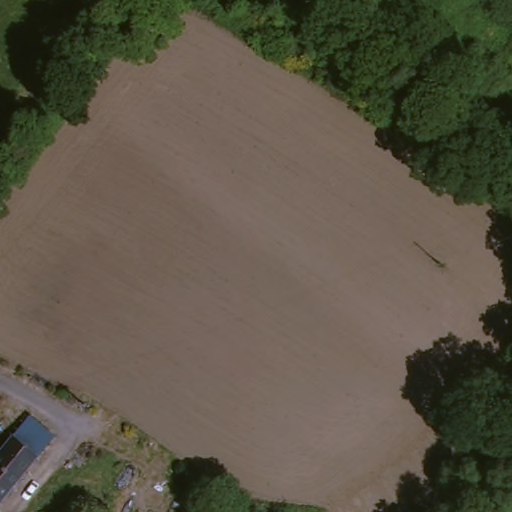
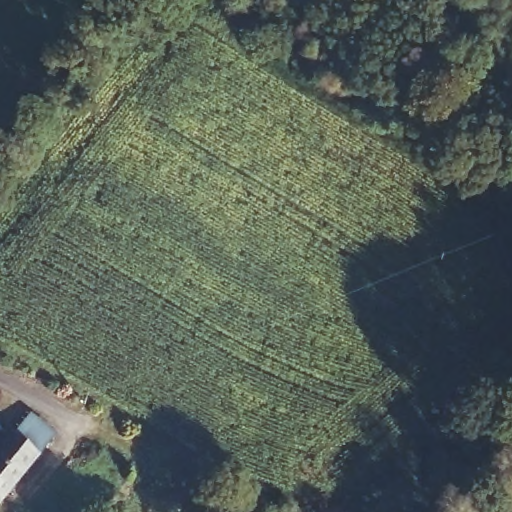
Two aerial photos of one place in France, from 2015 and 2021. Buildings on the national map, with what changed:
unchanged [(56,432),(21,473),(0,456),(0,454),(29,414),(56,432)]
unchanged [(0,501),(0,456),(21,473),(23,476),(0,501)]

